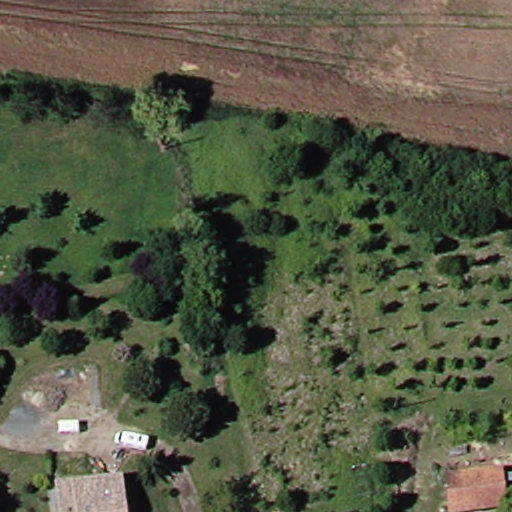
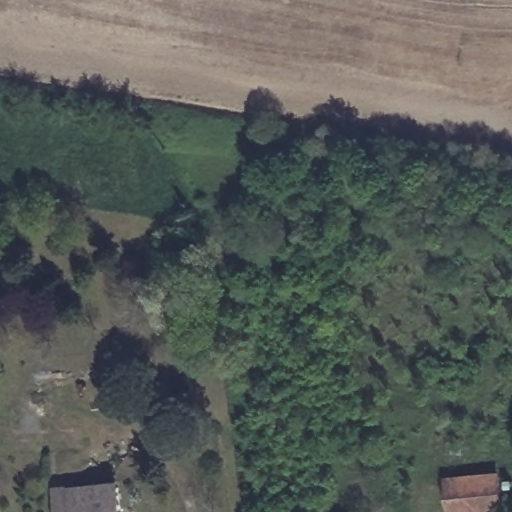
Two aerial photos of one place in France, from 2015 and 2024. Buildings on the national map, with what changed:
unchanged [(502,501),(450,510),(443,480),(497,468),(502,501)]
unchanged [(61,483),(76,480),(77,487),(122,481),(126,503),(127,512),(64,512),(62,491),(61,483)]

